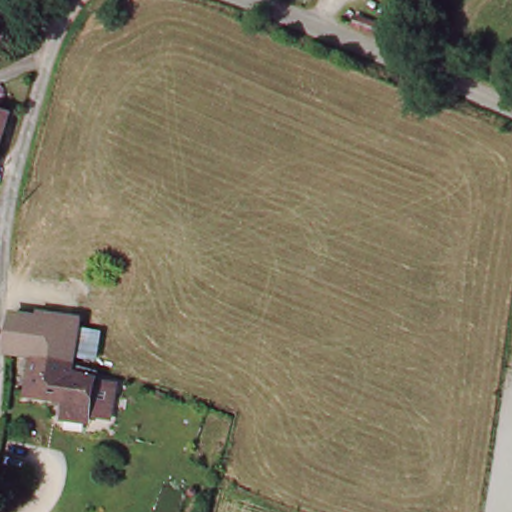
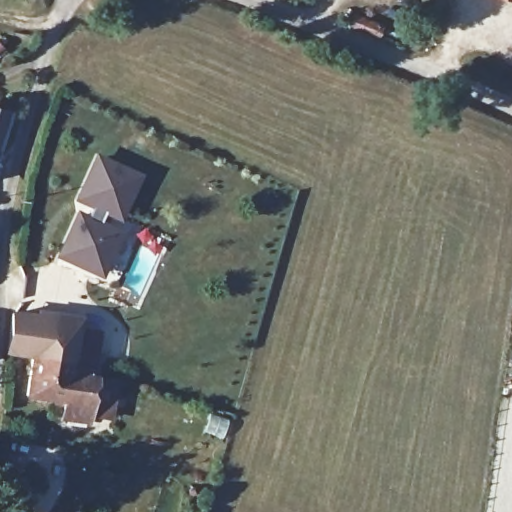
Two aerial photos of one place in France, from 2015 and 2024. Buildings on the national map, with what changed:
unchanged [(341,18),(361,29),(355,39),(335,28),(341,18)]
new [(511,62),(512,61),(512,62),(511,62)]
unchanged [(0,113),(7,115),(0,141),(0,113)]
new [(71,219),(79,222),(85,208),(72,202),(90,163),(130,180),(112,220),(100,214),(92,228),(111,237),(93,277),(53,258),(71,219)]
unchanged [(10,353),(15,315),(80,328),(70,367),(37,360),(10,353)]
unchanged [(70,367),(99,374),(97,383),(121,388),(115,423),(67,414),(69,403),(31,396),(37,360),(70,367)]

